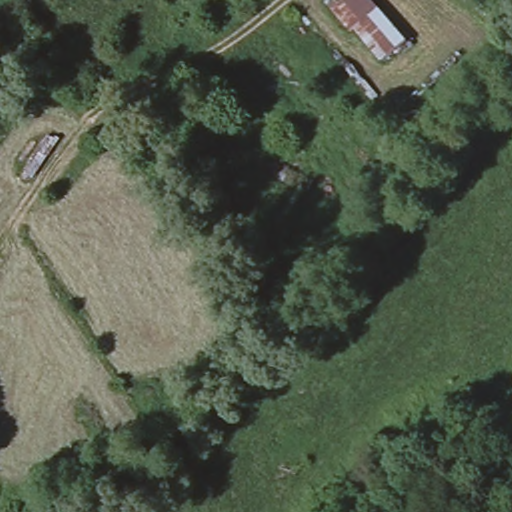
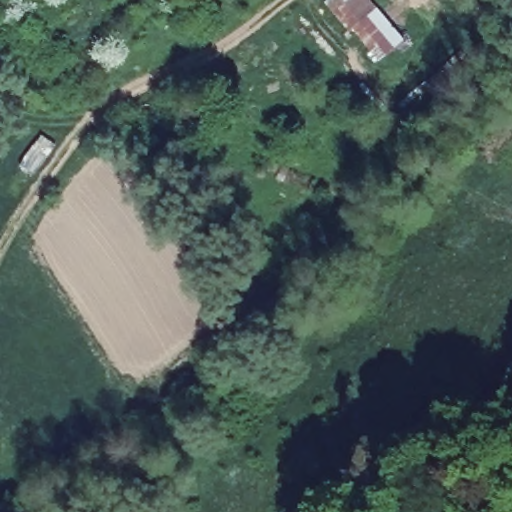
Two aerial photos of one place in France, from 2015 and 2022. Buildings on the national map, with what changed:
unchanged [(380,63),(326,2),(329,0),(373,0),(406,40),(380,63)]
unchanged [(309,464),(298,480),(278,465),(291,448),(309,464)]

